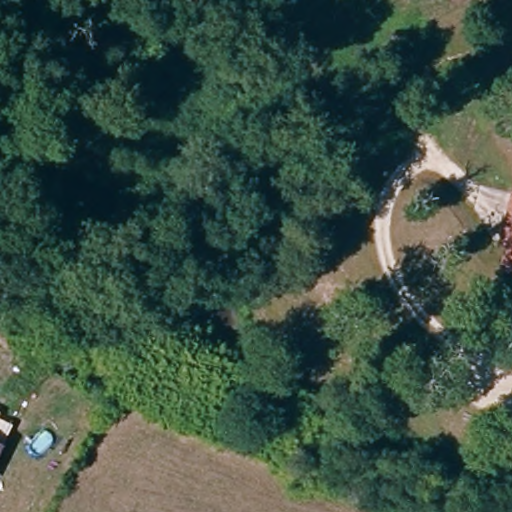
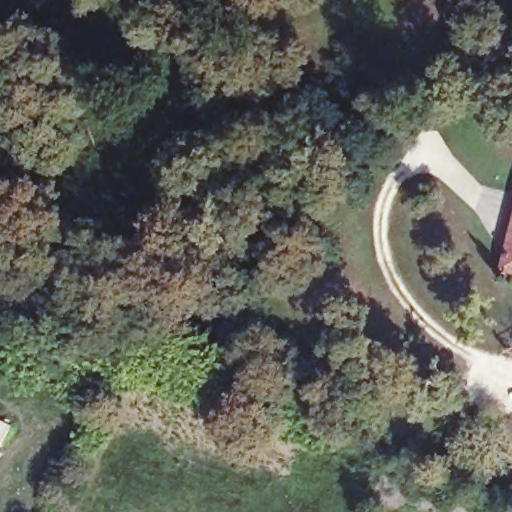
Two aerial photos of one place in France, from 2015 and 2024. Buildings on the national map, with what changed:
unchanged [(509,248),(501,245),(504,234),(512,203),(512,277),(503,274),(509,248)]
unchanged [(11,441),(0,460),(0,436),(11,441)]

